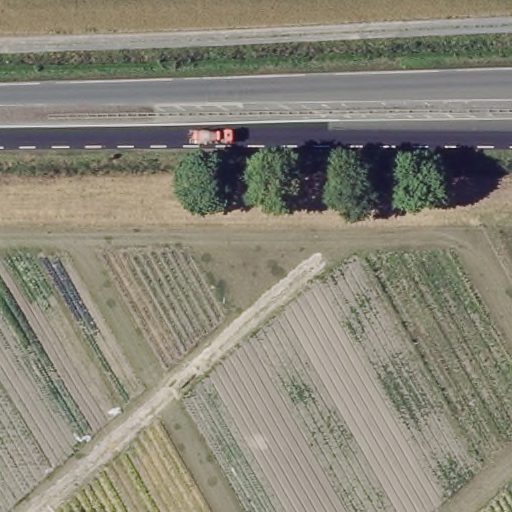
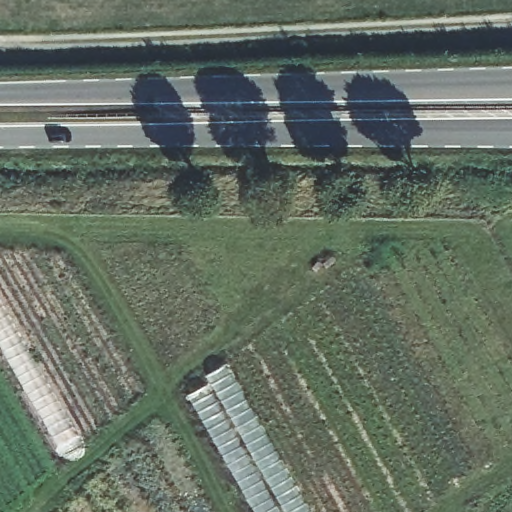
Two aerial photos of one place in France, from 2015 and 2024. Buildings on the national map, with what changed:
new [(86,441),(66,454),(0,345),(0,296),(86,441)]
new [(313,512),(256,512),(187,394),(210,380),(207,373),(227,361),(313,512)]

